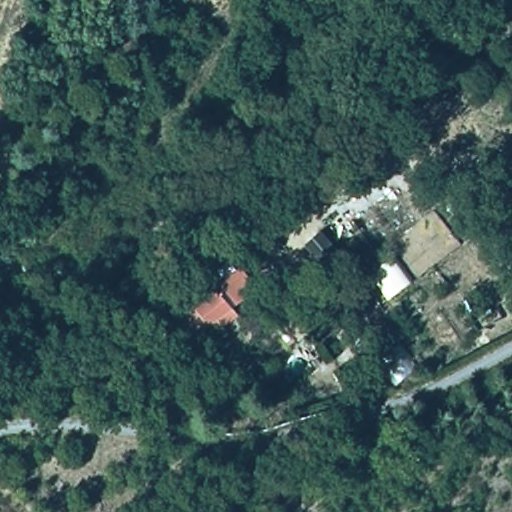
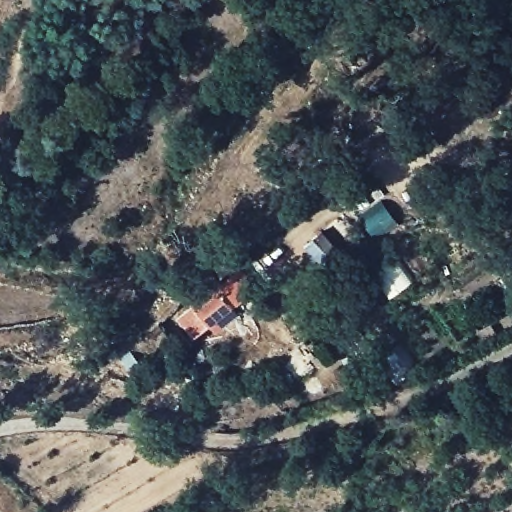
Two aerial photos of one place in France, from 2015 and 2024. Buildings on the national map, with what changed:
unchanged [(260,287),(237,305),(242,313),(228,322),(221,317),(196,336),(176,311),(218,276),(223,280),(245,265),(260,287)]

